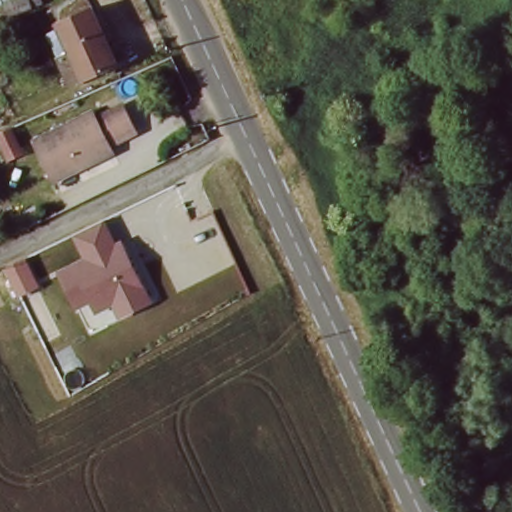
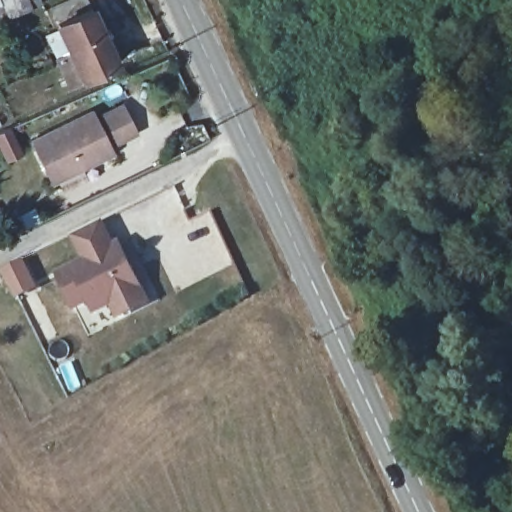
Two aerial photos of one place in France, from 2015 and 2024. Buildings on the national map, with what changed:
unchanged [(0,18),(0,0),(32,0),(33,5),(0,18)]
unchanged [(61,62),(73,57),(54,12),(81,0),(87,0),(118,68),(73,88),(61,62)]
unchanged [(50,173),(33,138),(93,108),(96,114),(123,100),(137,126),(109,142),(112,147),(84,162),(53,179),(50,173)]
unchanged [(115,243),(122,240),(152,301),(115,317),(110,307),(93,315),(90,302),(75,310),(58,272),(84,259),(74,236),(103,221),(115,243)]

